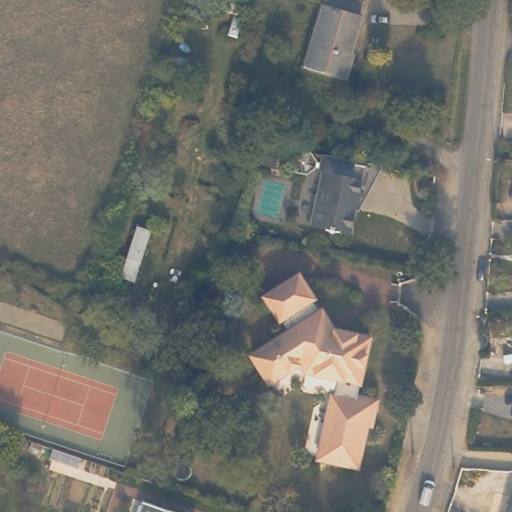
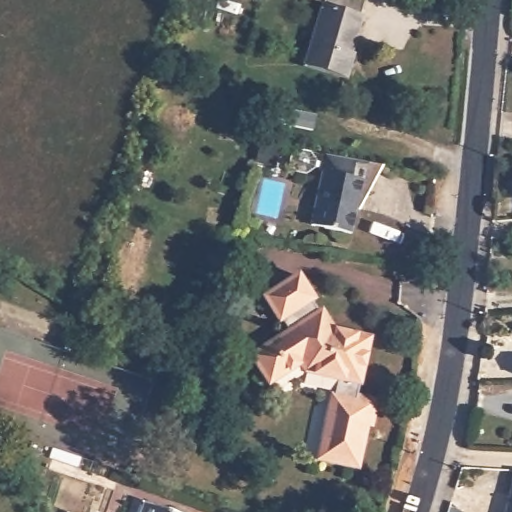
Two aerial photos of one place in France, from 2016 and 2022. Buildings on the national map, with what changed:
unchanged [(316,0),(360,0),(364,2),(361,17),(363,18),(351,56),(345,54),(338,75),(306,63),(324,2),(316,0)]
unchanged [(320,182),(317,182),(321,161),(373,169),(369,191),(372,191),(366,207),(358,205),(353,240),(311,232),(320,182)]
unchanged [(149,230),(131,282),(120,277),(136,224),(149,230)]
unchanged [(288,331),(281,317),(277,319),(265,295),(300,276),(313,298),(307,302),(315,313),(323,309),(327,314),(325,321),(319,326),(325,336),(333,332),(368,342),(356,396),(370,399),(377,410),(366,418),(362,418),(360,427),(363,427),(352,467),(312,456),(326,399),(330,401),(337,372),(318,367),(313,372),(301,368),(299,361),(297,361),(265,379),(251,352),(288,331)]
unchanged [(512,473),(512,512),(503,512),(512,473)]
unchanged [(144,499),(185,512),(140,512),(144,499)]

